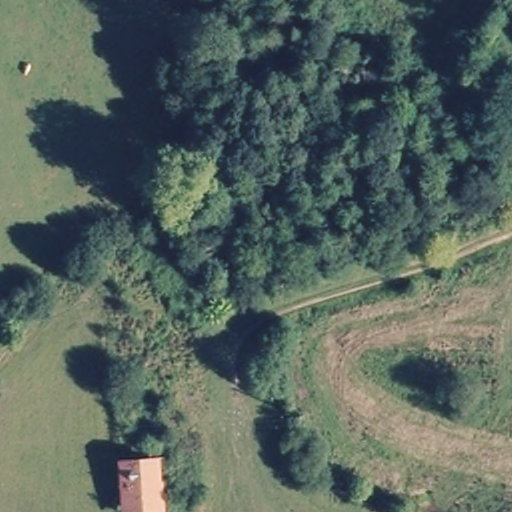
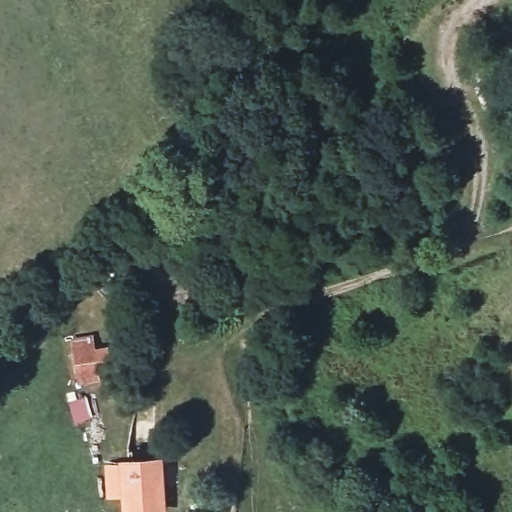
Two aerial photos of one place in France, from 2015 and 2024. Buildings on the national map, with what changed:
new [(96,349),(108,347),(113,379),(77,383),(70,338),(93,333),(96,349)]
unchanged [(165,512),(125,512),(122,465),(160,463),(165,512)]

